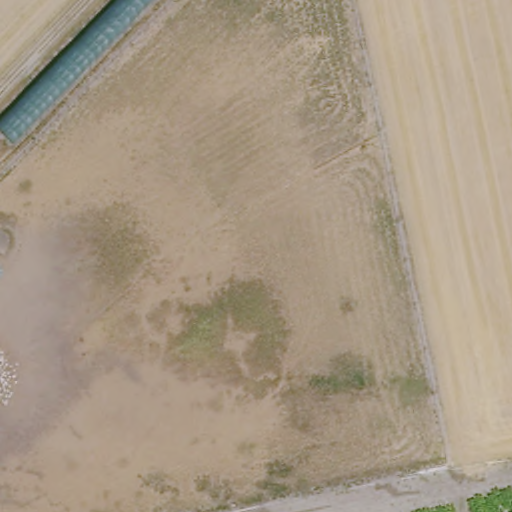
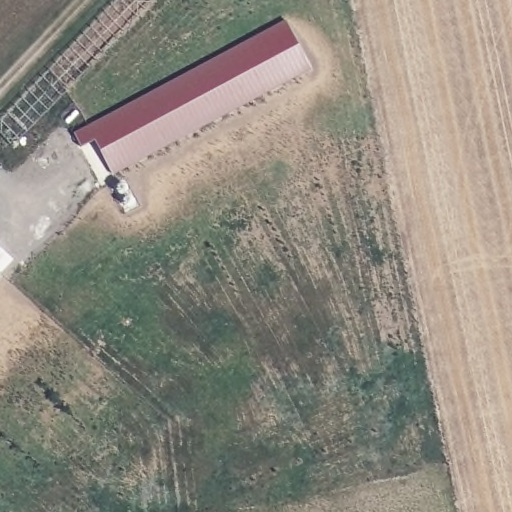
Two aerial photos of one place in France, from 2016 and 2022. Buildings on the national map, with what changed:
unchanged [(15,146),(0,131),(0,124),(120,0),(157,0),(15,146)]
new [(284,22),(312,70),(100,180),(75,133),(284,22)]
unchanged [(0,279),(0,268),(5,273),(0,279)]

